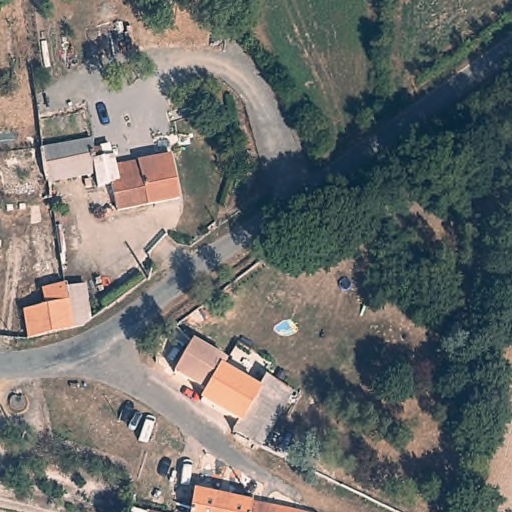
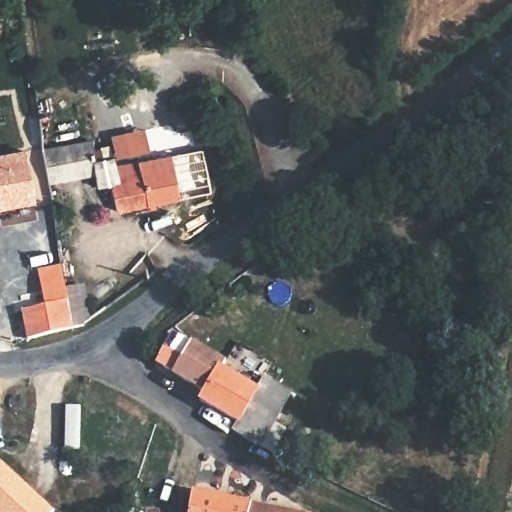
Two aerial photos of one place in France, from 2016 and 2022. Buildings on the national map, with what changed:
unchanged [(109,143),(113,161),(115,170),(139,166),(148,209),(117,216),(111,189),(97,193),(95,179),(50,187),(43,153),(41,153),(40,144),(56,141),(57,150),(91,144),(109,143)]
new [(25,148),(35,204),(0,210),(0,153),(25,148)]
demolished [(41,153),(43,153),(50,187),(51,203),(0,208),(0,157),(41,153)]
unchanged [(26,330),(24,321),(45,316),(42,301),(64,296),(65,299),(73,298),(85,295),(90,329),(84,334),(85,335),(72,339),(29,349),(26,330)]
unchanged [(237,428),(201,407),(206,397),(174,378),(192,347),(226,367),(226,368),(228,369),(225,374),(257,393),(258,394),(265,381),(292,397),(290,402),(260,452),(232,436),(237,428)]
new [(54,509),(51,512),(0,512),(0,460),(54,509)]
unchanged [(209,502),(253,510),(263,512),(207,512),(209,502)]

